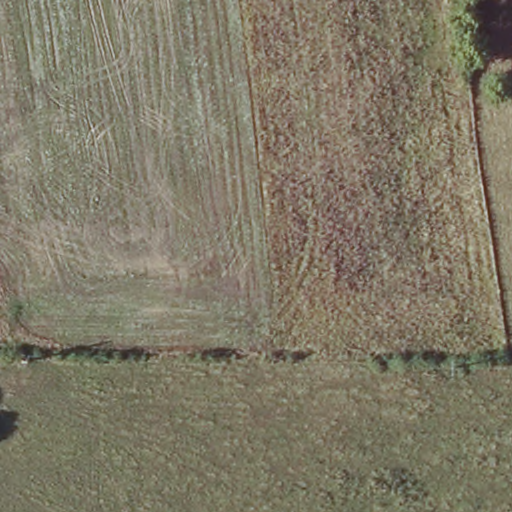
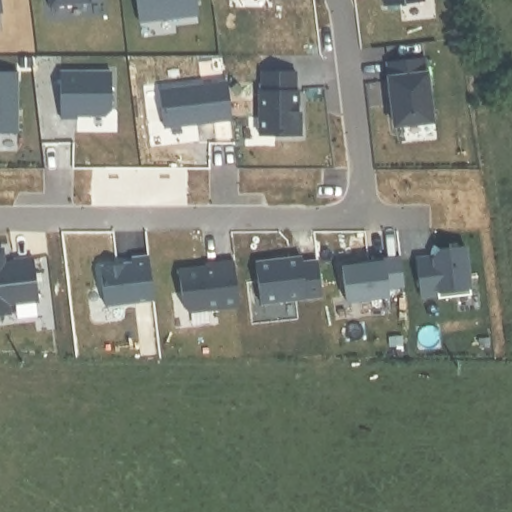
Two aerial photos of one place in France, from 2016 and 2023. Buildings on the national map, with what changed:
new [(3,12),(0,12),(0,0),(2,0),(3,12)]
new [(90,2),(50,6),(50,0),(90,0),(90,2)]
new [(137,0),(196,0),(197,16),(140,22),(137,0)]
new [(425,3),(385,5),(384,0),(425,0),(425,3)]
new [(435,121),(393,126),(388,62),(425,58),(435,121)]
new [(111,70),(112,109),(108,116),(78,115),(79,118),(60,119),(60,70),(111,70)]
new [(295,89),(300,89),(299,114),(302,115),(302,137),(260,135),(260,71),(296,72),(295,89)]
new [(19,131),(0,131),(0,72),(17,72),(19,131)]
new [(227,82),(232,118),(165,126),(160,90),(227,82)]
new [(5,246),(6,261),(32,256),(38,301),(10,305),(11,314),(0,315),(0,247),(5,246)]
new [(470,293),(422,298),(416,256),(435,255),(438,248),(465,246),(470,293)]
new [(321,297),(261,305),(257,261),(301,255),(301,261),(317,259),(321,297)]
new [(403,286),(389,290),(390,295),(346,302),(342,265),(376,261),(377,259),(400,256),(403,286)]
new [(153,299),(105,304),(101,269),(131,262),(131,258),(149,257),(153,299)]
new [(239,307),(186,312),(177,267),(234,261),(239,307)]

